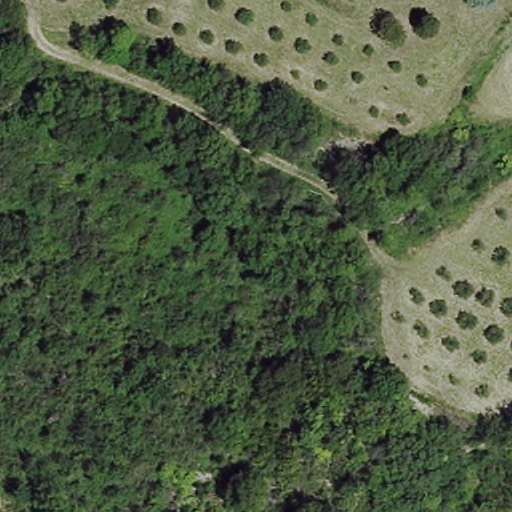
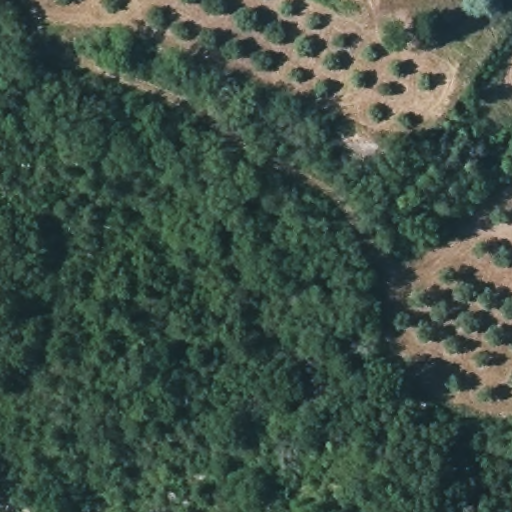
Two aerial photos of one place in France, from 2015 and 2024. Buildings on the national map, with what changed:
[]

